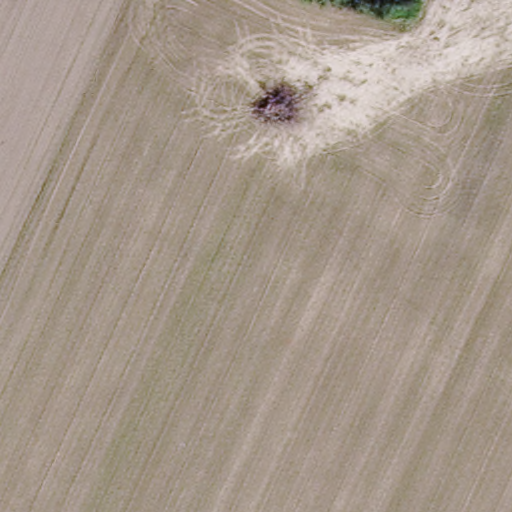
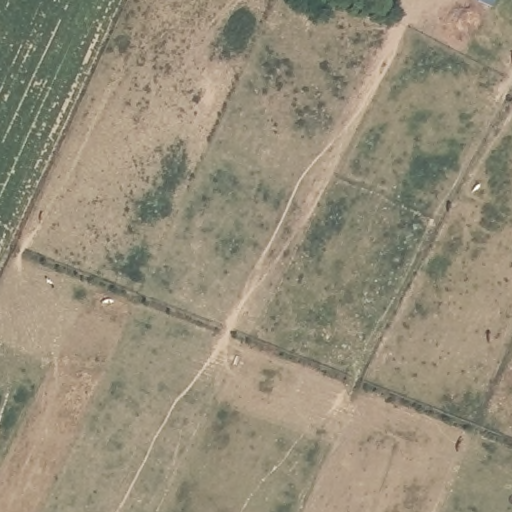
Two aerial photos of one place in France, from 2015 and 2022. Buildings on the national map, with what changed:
new [(495,7),(480,0),(497,0),(495,7)]

